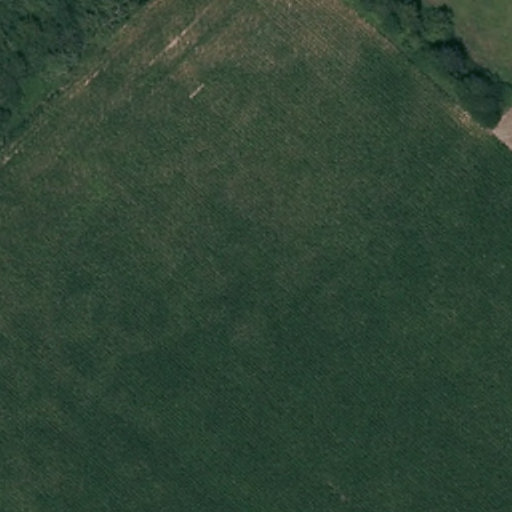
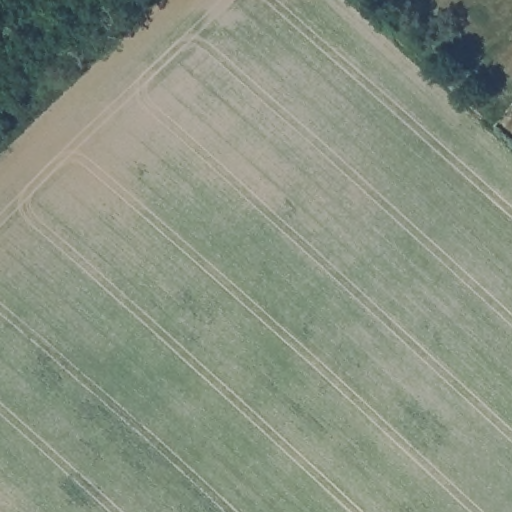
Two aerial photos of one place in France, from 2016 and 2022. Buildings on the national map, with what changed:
[]

